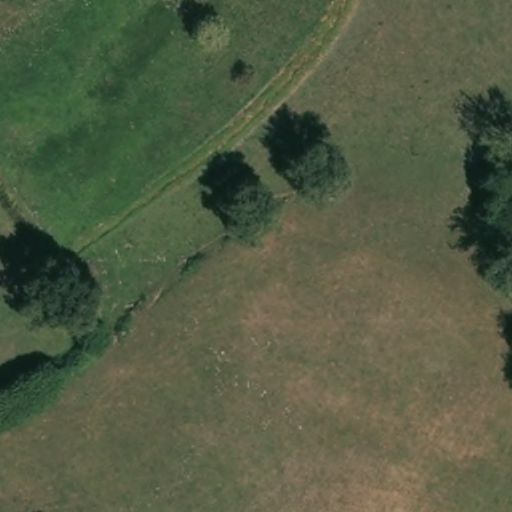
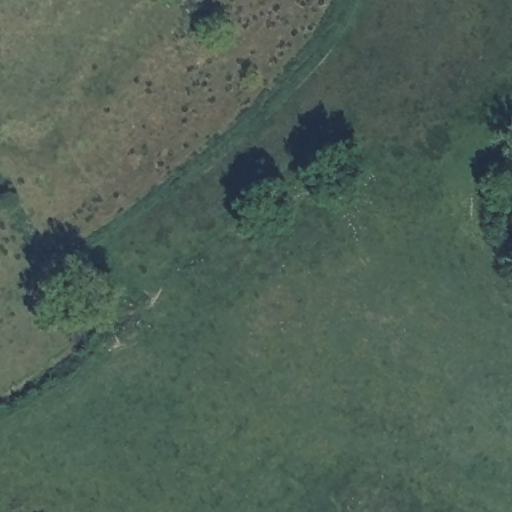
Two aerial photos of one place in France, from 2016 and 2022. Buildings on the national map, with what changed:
[]

